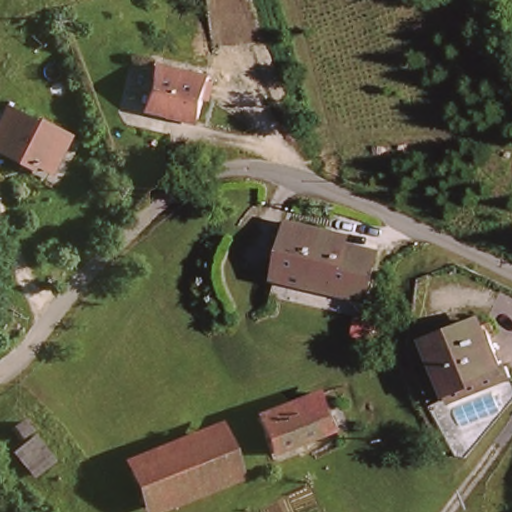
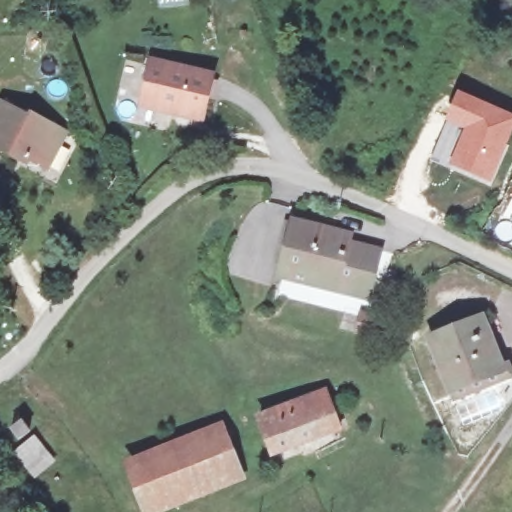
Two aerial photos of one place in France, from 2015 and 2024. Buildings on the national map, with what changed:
unchanged [(204,132),(178,121),(175,129),(141,116),(157,75),(217,99),(204,132)]
new [(512,118),(512,121),(486,179),(452,163),(468,128),(447,118),(458,96),(512,118)]
unchanged [(21,167),(17,174),(0,166),(0,133),(5,120),(67,147),(53,182),(21,167)]
unchanged [(324,239),(380,254),(367,299),(311,283),(312,277),(285,269),(297,224),(326,232),(324,239)]
unchanged [(429,329),(482,315),(488,323),(491,327),(500,360),(510,374),(508,376),(448,394),(432,341),(429,329)]
unchanged [(326,391),(338,432),(270,450),(258,411),(326,391)]
unchanged [(145,512),(123,461),(227,420),(249,476),(161,512),(145,512)]

